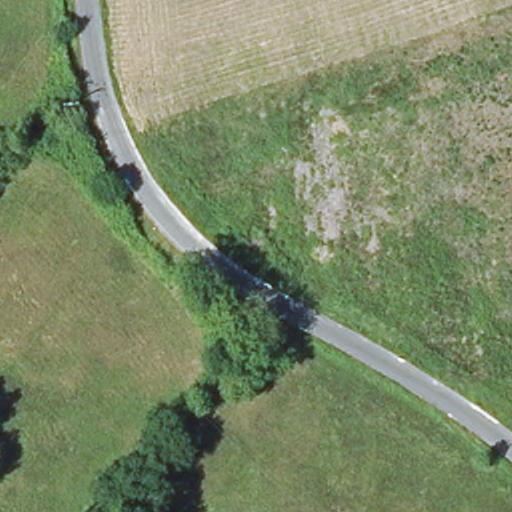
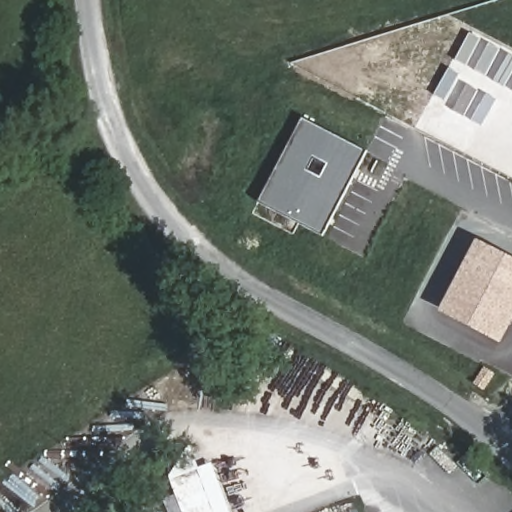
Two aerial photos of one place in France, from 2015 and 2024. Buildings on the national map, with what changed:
new [(303,119),(367,153),(323,237),(259,203),(303,119)]
new [(502,346),(439,313),(477,241),(512,259),(512,327),(502,346)]
new [(486,392),(477,387),(487,371),(496,376),(486,392)]
new [(169,481),(174,467),(192,458),(197,470),(211,464),(231,512),(168,512),(163,502),(176,496),(169,481)]

